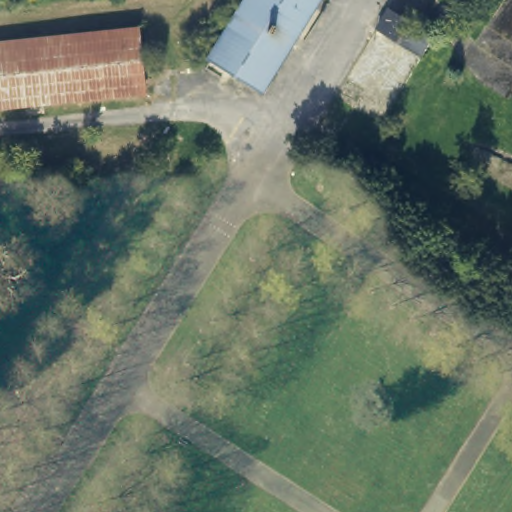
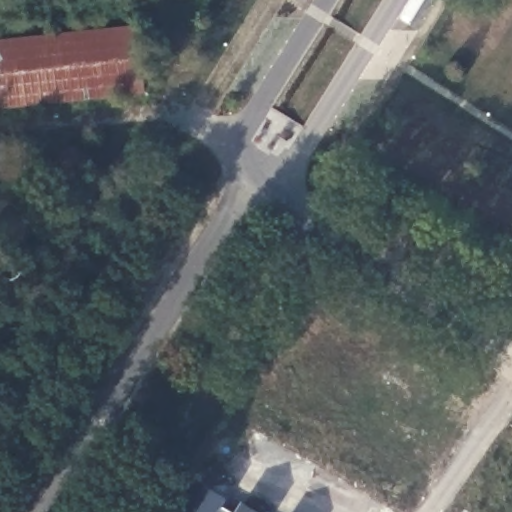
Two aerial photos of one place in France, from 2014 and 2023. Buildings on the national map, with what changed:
demolished [(258,95),(204,62),(243,0),(316,0),(258,95)]
demolished [(391,7),(435,33),(423,53),(379,27),(391,7)]
unchanged [(0,112),(0,48),(136,34),(142,97),(0,112)]

